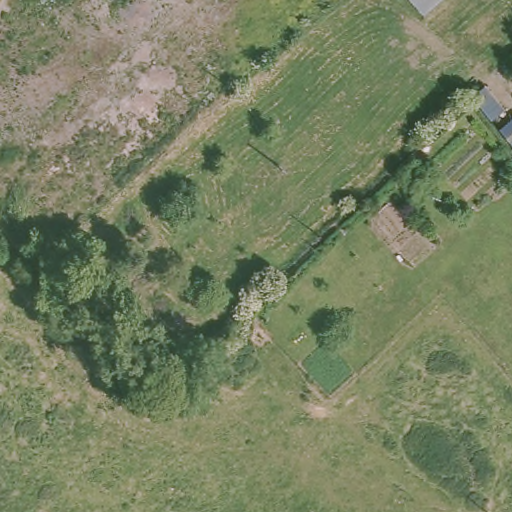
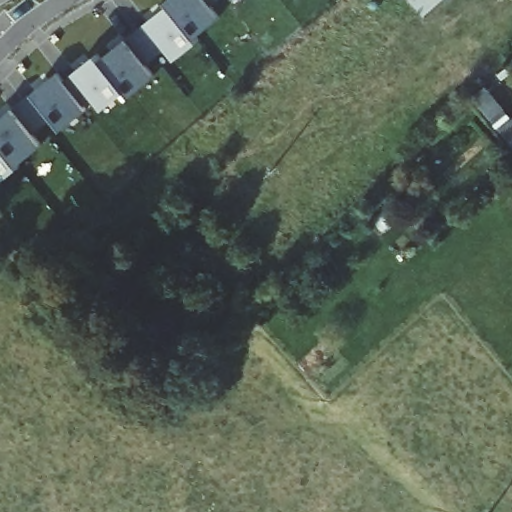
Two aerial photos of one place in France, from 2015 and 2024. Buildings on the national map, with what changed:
new [(172,4),(169,0),(208,0),(222,17),(174,55),(147,23),(172,4)]
new [(208,0),(217,0),(212,5),(208,0)]
unchanged [(415,0),(445,0),(428,15),(415,0)]
new [(146,63),(127,40),(147,23),(167,47),(146,63)]
new [(156,76),(134,94),(132,90),(126,91),(105,108),(76,72),(100,53),(104,58),(127,40),(156,76)]
new [(96,97),(84,105),(87,109),(62,130),(52,117),(32,132),(15,110),(12,106),(57,74),(64,81),(76,72),(96,97)]
new [(475,96),(488,86),(512,114),(512,142),(475,96)]
new [(0,122),(15,110),(43,146),(22,162),(0,182),(0,122)]

